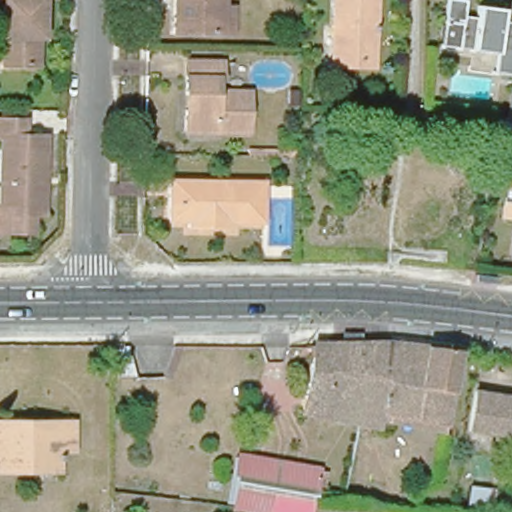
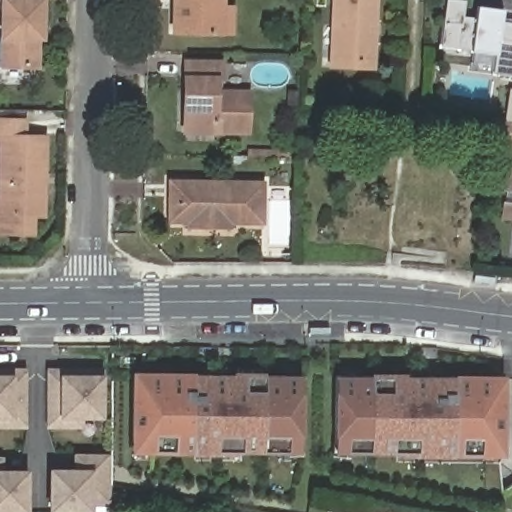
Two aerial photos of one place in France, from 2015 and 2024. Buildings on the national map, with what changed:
unchanged [(33,60),(0,60),(0,0),(38,0),(38,16),(38,31),(33,31),(33,60)]
unchanged [(217,32),(169,31),(169,0),(218,0),(218,6),(230,6),(229,32),(217,32)]
unchanged [(363,65),(328,63),(330,0),(372,0),(371,26),(375,27),(374,34),(371,34),(369,65),(363,65)]
unchanged [(490,71),(492,54),(454,47),(457,24),(439,21),(443,0),(458,0),(461,0),(459,14),(472,16),(474,5),(499,9),(498,20),(509,22),(512,6),(512,75),(490,71)]
unchanged [(219,61),(218,76),(213,76),(212,89),(245,91),(244,132),(179,131),(179,104),(180,86),(181,60),(219,61)]
unchanged [(287,89),(298,89),(298,106),(287,105),(287,89)]
unchanged [(512,124),(512,136),(497,134),(498,122),(512,124)]
unchanged [(28,218),(28,234),(0,234),(0,125),(20,126),(20,141),(41,142),(40,181),(39,218),(33,218),(28,218)]
unchanged [(249,156),(250,148),(299,149),(299,157),(249,156)]
unchanged [(499,170),(512,172),(512,222),(497,219),(499,204),(502,205),(503,195),(496,194),(499,170)]
unchanged [(233,227),(189,226),(189,223),(169,222),(169,179),(267,180),(267,225),(250,224),(233,224),(233,227)]
demolished [(444,418),(379,407),(380,404),(324,393),(327,373),(309,369),(313,348),(308,347),(309,342),(314,343),(314,337),(366,336),(427,340),(457,345),(444,418)]
new [(27,369),(27,425),(27,428),(0,428),(0,367),(27,367),(27,369)]
new [(104,418),(84,418),(84,428),(47,428),(47,425),(47,369),(47,367),(104,367),(104,373),(104,418)]
new [(130,454),(132,370),(193,370),(193,374),(233,375),(232,370),(264,370),(265,373),(302,374),(300,451),(264,450),(239,451),(239,455),(130,454)]
new [(334,452),(335,437),(335,392),(335,375),(372,375),(371,372),(406,373),(406,376),(454,376),(454,374),(506,375),(504,456),(399,457),(400,453),(369,453),(334,452)]
demolished [(470,429),(477,391),(512,397),(512,436),(470,429)]
demolished [(59,425),(58,450),(64,450),(64,456),(58,456),(58,472),(0,471),(0,420),(35,420),(35,425),(59,425)]
new [(110,506),(94,506),(94,512),(49,512),(49,467),(74,467),(74,453),(110,453),(110,506)]
demolished [(307,512),(260,512),(232,506),(242,455),(315,470),(312,486),(307,512)]
new [(5,457),(5,469),(29,469),(29,512),(0,512),(0,457),(1,457),(5,457)]

